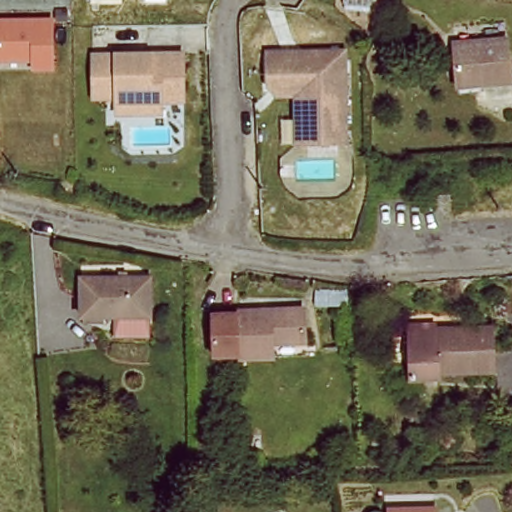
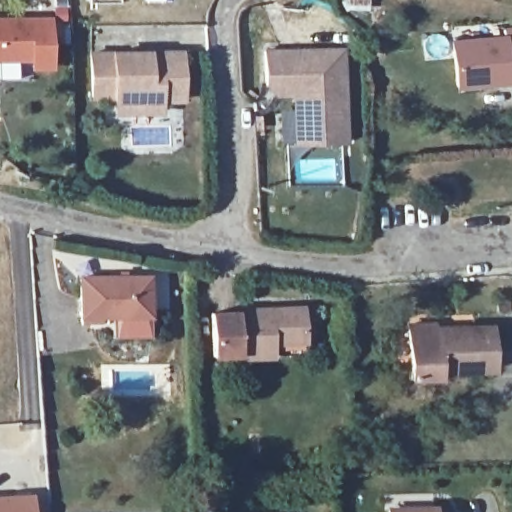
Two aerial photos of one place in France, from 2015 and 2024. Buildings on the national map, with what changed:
unchanged [(373,0),(373,8),(352,7),(341,6),(342,0),(373,0)]
unchanged [(56,19),(58,74),(35,74),(32,64),(0,65),(0,19),(56,19)]
unchanged [(508,82),(455,80),(455,42),(508,42),(508,82)]
unchanged [(338,52),(340,145),(300,146),(299,87),(261,87),(260,54),(338,52)]
unchanged [(152,102),(153,115),(107,116),(107,106),(107,100),(84,101),(82,59),(172,54),(174,91),(174,101),(152,102)]
unchanged [(79,275),(151,273),(153,316),(106,317),(81,318),(79,275)]
unchanged [(211,311),(240,310),(239,302),(308,300),(310,340),(277,341),(277,361),(239,362),(213,363),(211,311)]
unchanged [(493,374),(436,371),(434,380),(407,378),(408,329),(408,317),(435,318),(436,330),(494,330),(493,374)]
new [(35,494),(36,512),(0,512),(0,497),(35,494)]
unchanged [(430,512),(390,512),(390,508),(430,507),(430,512)]

